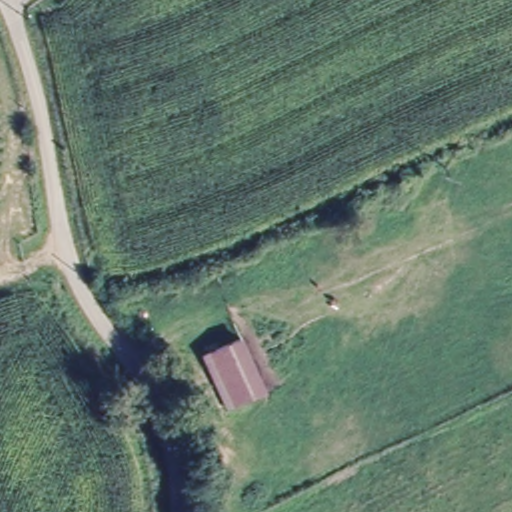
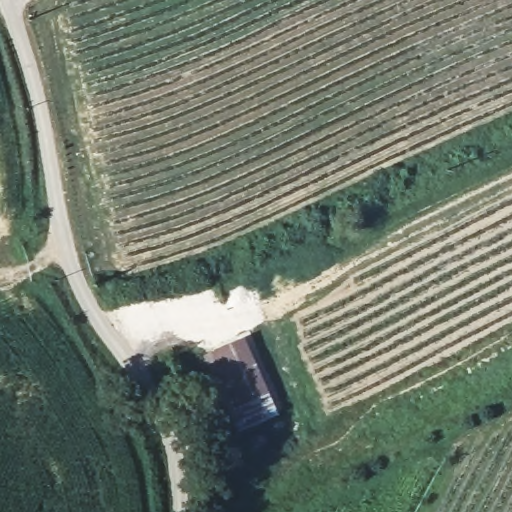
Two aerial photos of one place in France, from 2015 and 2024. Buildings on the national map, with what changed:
unchanged [(202,353),(240,339),(262,397),(222,411),(202,353)]

